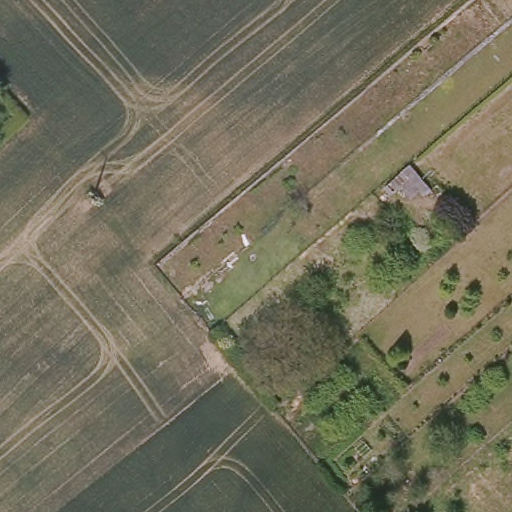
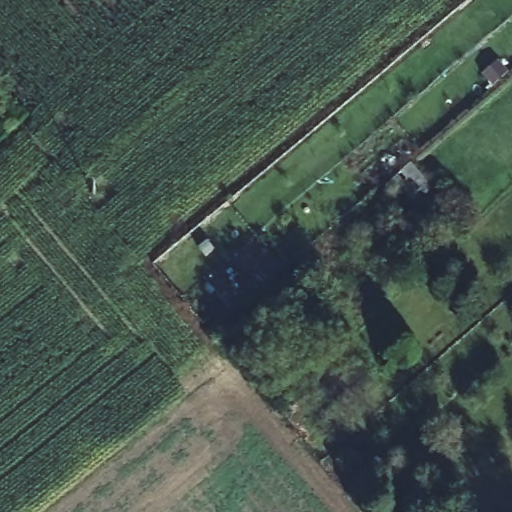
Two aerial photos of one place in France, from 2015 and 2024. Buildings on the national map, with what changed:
unchanged [(415,170),(432,197),(416,210),(402,200),(386,217),(376,202),(415,170)]

